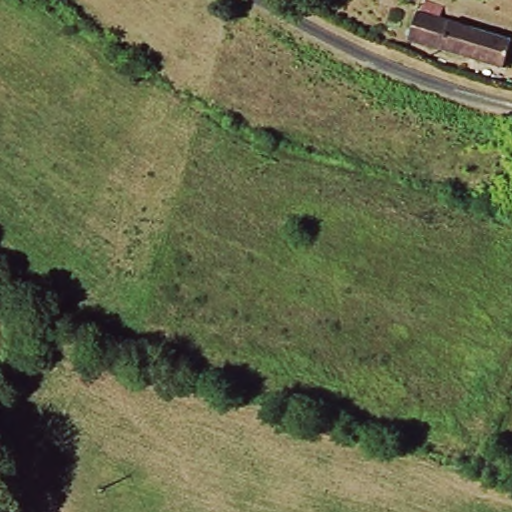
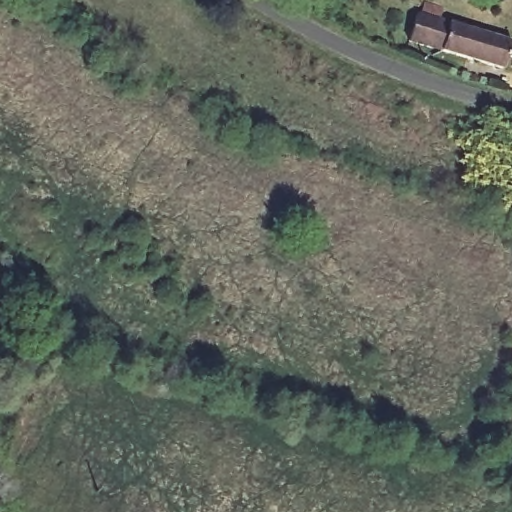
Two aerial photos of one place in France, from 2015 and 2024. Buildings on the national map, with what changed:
unchanged [(415,44),(426,14),(431,16),(434,5),(452,11),(449,21),(512,41),(512,71),(512,72),(415,44)]

